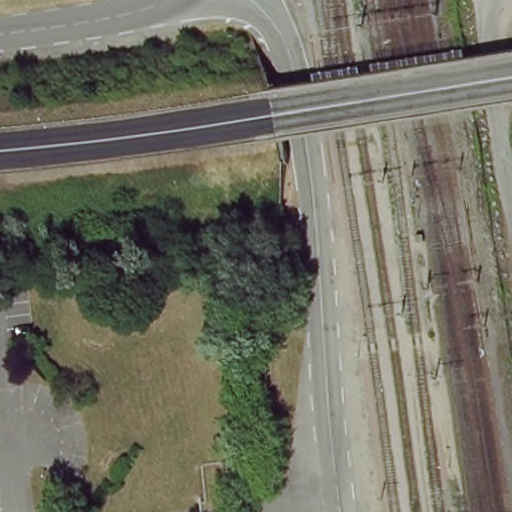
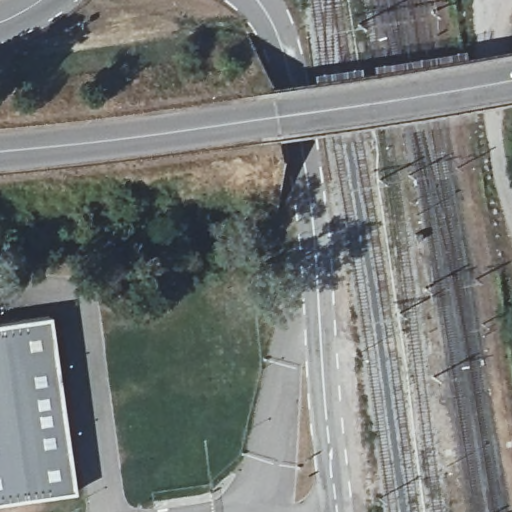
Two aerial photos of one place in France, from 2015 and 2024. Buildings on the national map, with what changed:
new [(72,490),(0,500),(0,325),(47,319),(72,490)]

